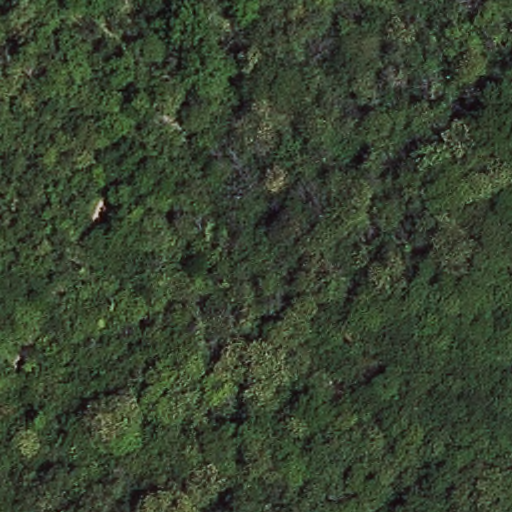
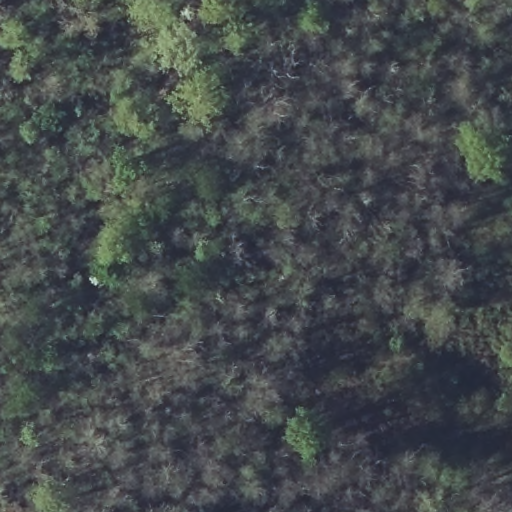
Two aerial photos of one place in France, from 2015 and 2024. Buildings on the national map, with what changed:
[]

